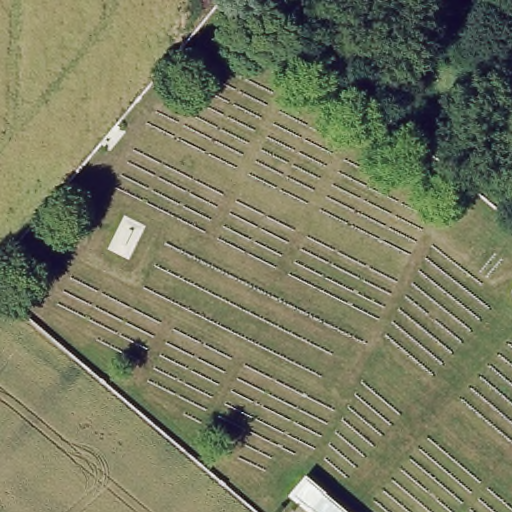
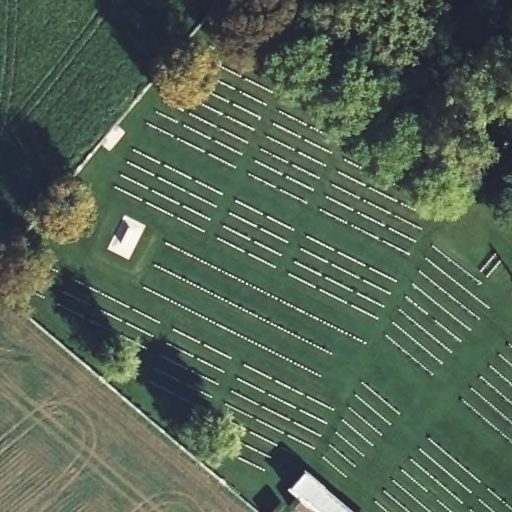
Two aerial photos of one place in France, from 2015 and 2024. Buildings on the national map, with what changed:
unchanged [(300,470),(348,512),(308,512),(284,490),(300,470)]

